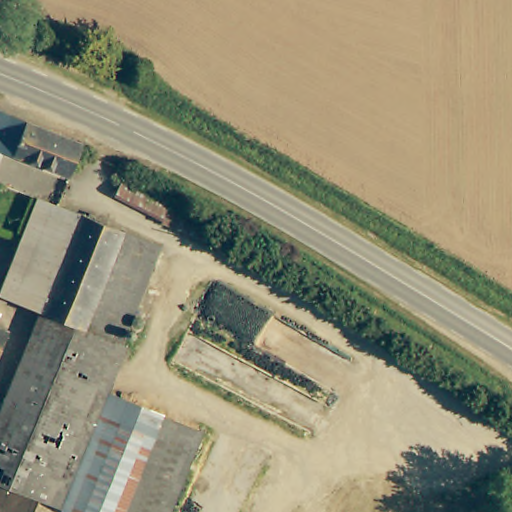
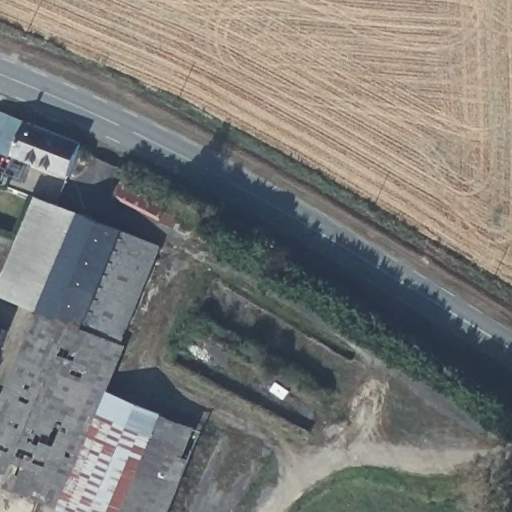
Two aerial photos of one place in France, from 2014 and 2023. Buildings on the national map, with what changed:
unchanged [(79,141),(68,171),(0,146),(0,124),(5,113),(79,141)]
unchanged [(172,200),(204,215),(194,238),(172,228),(151,220),(152,213),(105,194),(113,175),(172,200)]
unchanged [(46,316),(41,313),(42,307),(6,292),(45,200),(161,248),(136,309),(119,346),(105,340),(46,316)]
unchanged [(105,340),(119,346),(130,350),(120,377),(113,396),(66,505),(0,477),(0,426),(30,355),(46,316),(105,340)]
unchanged [(0,348),(0,321),(10,325),(0,348)]
unchanged [(113,396),(203,435),(170,512),(82,512),(66,505),(113,396)]

